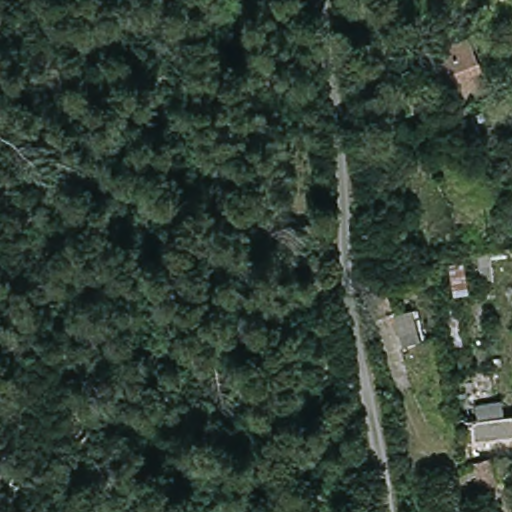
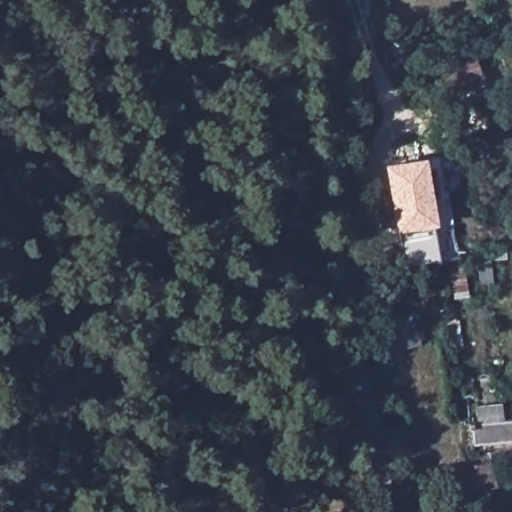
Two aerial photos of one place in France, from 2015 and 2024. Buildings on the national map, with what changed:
unchanged [(442,85),(434,67),(481,48),(489,68),(442,85)]
new [(424,156),(436,223),(432,223),(438,259),(405,265),(397,229),(395,230),(384,162),(424,156)]
unchanged [(423,340),(404,346),(396,317),(413,311),(423,340)]
unchanged [(467,424),(480,422),(479,406),(504,403),(505,419),(512,418),(512,439),(469,443),(467,424)]
unchanged [(497,488),(481,493),(474,470),(491,466),(497,488)]

